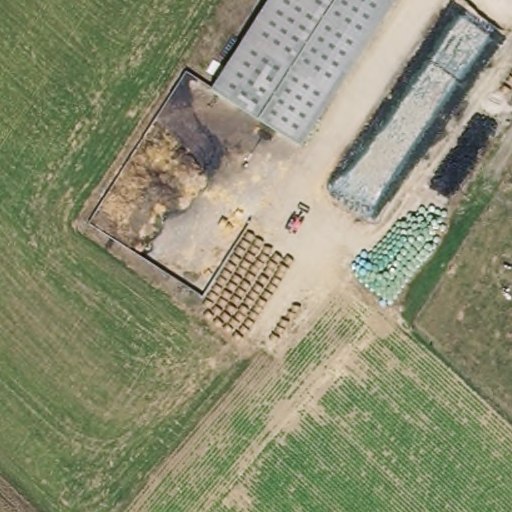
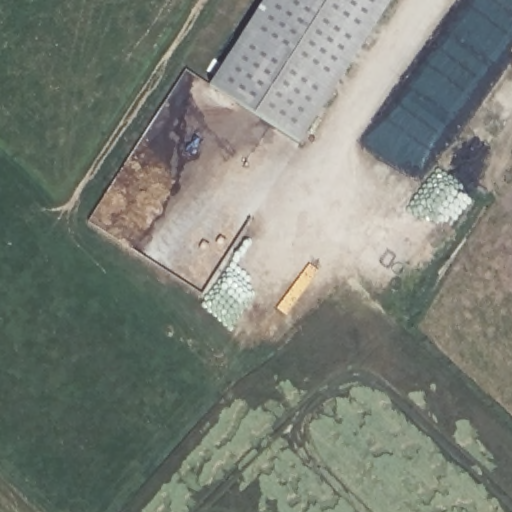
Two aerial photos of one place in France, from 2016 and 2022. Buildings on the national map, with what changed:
unchanged [(267,0),(393,0),(301,143),(211,86),(267,0)]

